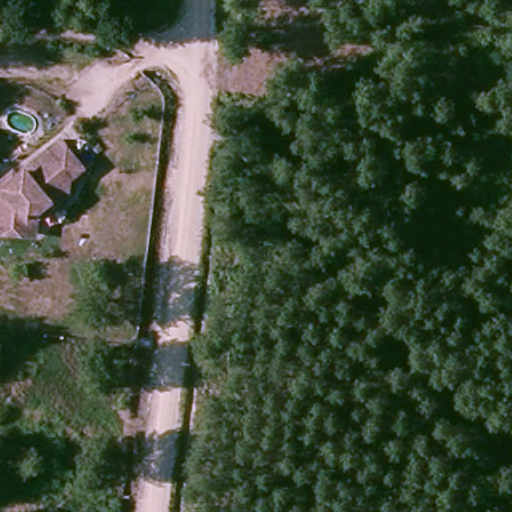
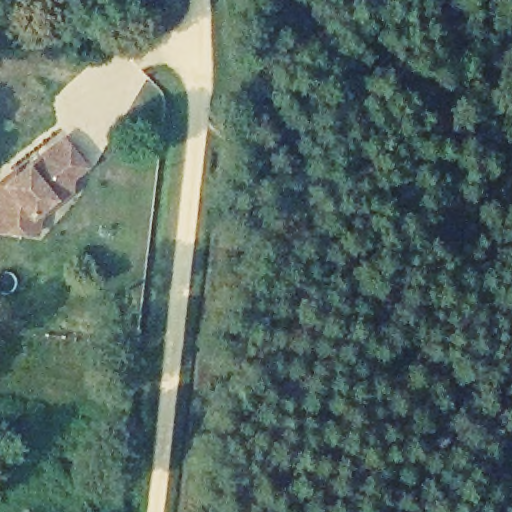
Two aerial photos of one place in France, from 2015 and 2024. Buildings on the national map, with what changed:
unchanged [(28,234),(0,231),(0,185),(1,184),(14,173),(17,176),(61,138),(82,166),(67,179),(67,192),(49,205),(37,218),(35,235),(28,234)]

